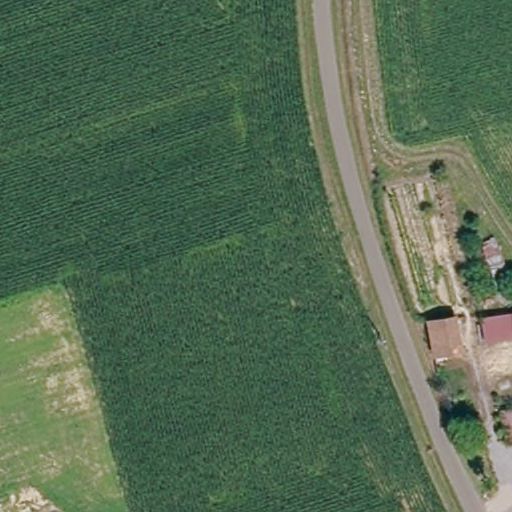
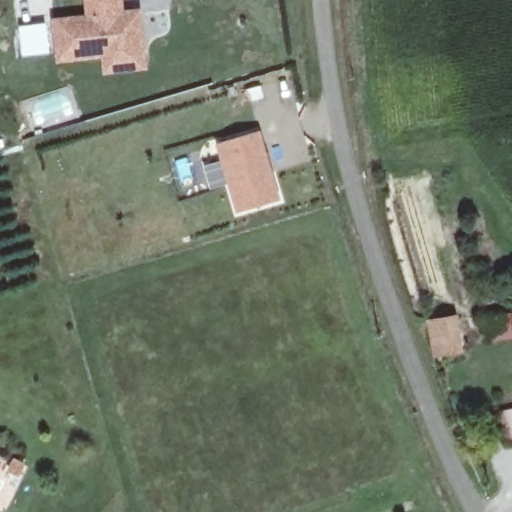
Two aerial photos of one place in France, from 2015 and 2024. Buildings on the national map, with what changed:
new [(59,59),(56,20),(90,17),(89,2),(88,0),(123,0),(124,14),(141,12),(145,51),(146,67),(107,71),(106,55),(59,59)]
new [(236,211),(215,143),(261,130),(281,197),(236,211)]
unchanged [(512,312),(512,338),(483,342),(477,318),(512,312)]
unchanged [(455,324),(460,356),(434,360),(429,327),(455,324)]

